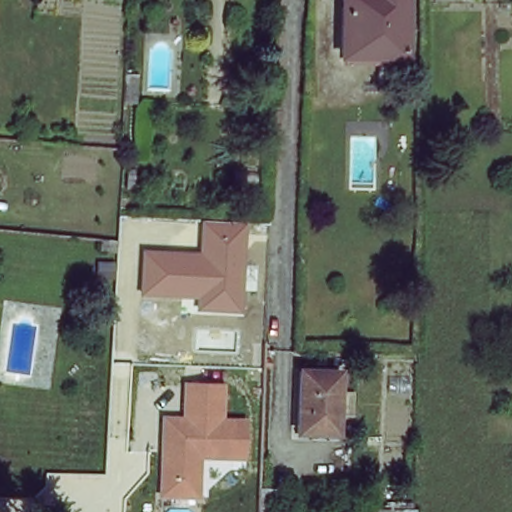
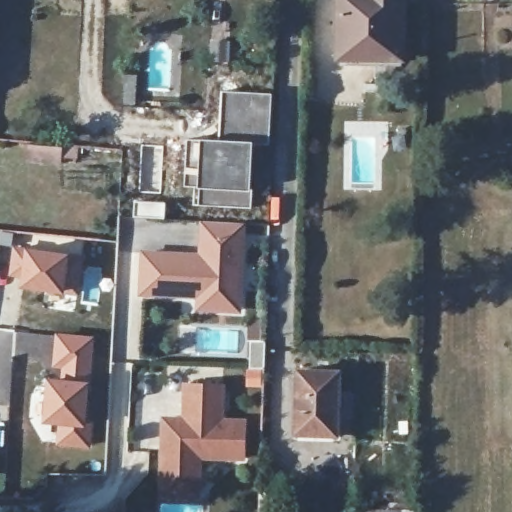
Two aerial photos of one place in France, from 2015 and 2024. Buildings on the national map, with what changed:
unchanged [(342,64),(342,4),(369,4),(369,0),(404,0),(404,64),(342,64)]
new [(210,37),(229,37),(229,62),(208,62),(210,37)]
unchanged [(134,74),(133,102),(121,101),(122,91),(122,73),(134,74)]
new [(222,89),(273,92),(270,142),(255,141),(219,138),(222,89)]
new [(186,137),(219,138),(255,141),(252,208),(193,205),(194,187),(184,187),(186,137)]
new [(23,142),(79,146),(77,161),(61,160),(60,164),(21,160),(23,142)]
new [(134,199),(166,201),(165,219),(133,217),(134,199)]
unchanged [(141,249),(198,252),(201,220),(246,223),(240,313),(195,310),(197,298),(140,296),(141,249)]
new [(13,244),(75,253),(69,292),(18,288),(19,278),(8,276),(13,244)]
new [(55,331),(95,335),(92,375),(51,368),(55,331)]
unchanged [(295,435),(296,372),(337,374),(336,437),(295,435)]
new [(91,449),(57,446),(58,424),(42,423),(47,377),(91,380),(88,421),(93,422),(91,449)]
unchanged [(224,417),(246,418),(244,460),(202,459),(200,498),(159,497),(161,415),(182,415),(182,382),(225,384),(224,417)]
unchanged [(302,490),(301,512),(259,512),(260,490),(302,490)]
unchanged [(351,512),(351,508),(416,509),(415,512),(351,512)]

